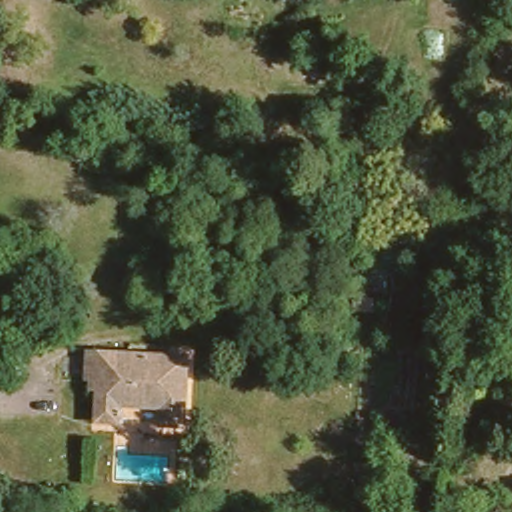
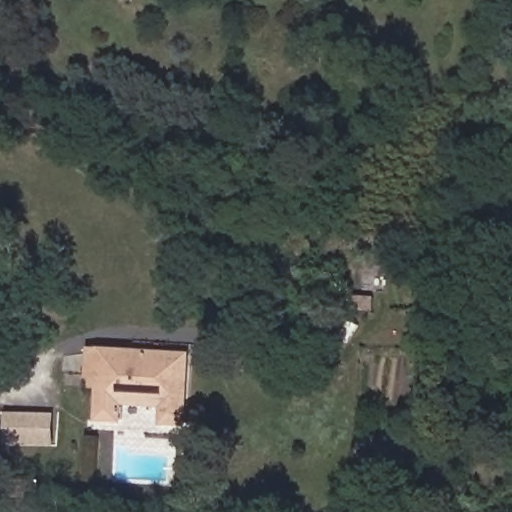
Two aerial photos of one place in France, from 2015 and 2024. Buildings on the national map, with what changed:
unchanged [(187,348),(183,420),(155,419),(156,400),(118,398),(118,416),(92,415),(94,382),(84,381),(84,368),(79,367),(80,343),(187,348)]
new [(4,446),(4,412),(54,413),(54,447),(4,446)]

